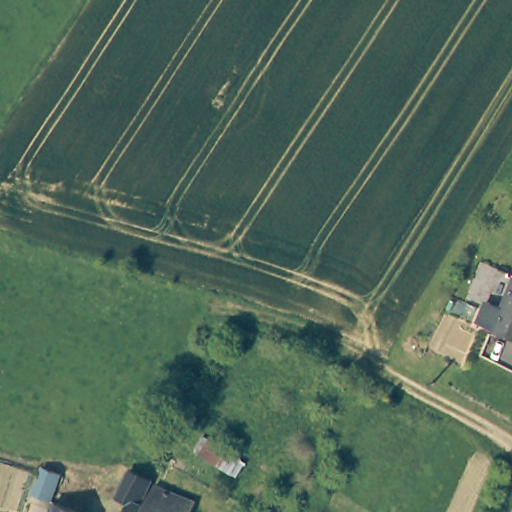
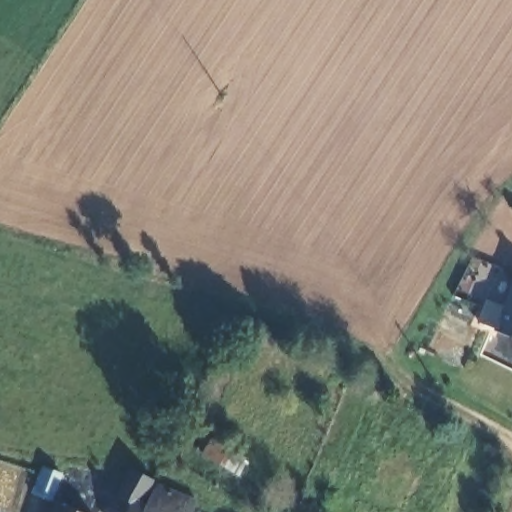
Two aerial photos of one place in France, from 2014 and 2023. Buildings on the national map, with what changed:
unchanged [(504,308),(512,286),(512,338),(478,324),(486,302),(504,308)]
unchanged [(126,461),(150,471),(143,489),(141,498),(144,499),(147,501),(155,483),(192,502),(188,512),(127,512),(134,494),(114,484),(116,480),(124,464),(126,461)]
unchanged [(55,509),(33,502),(41,480),(37,479),(41,472),(63,481),(56,505),(75,512),(54,512),(55,509)]

